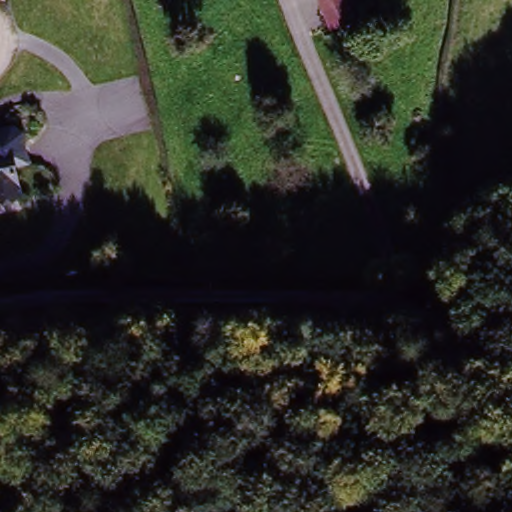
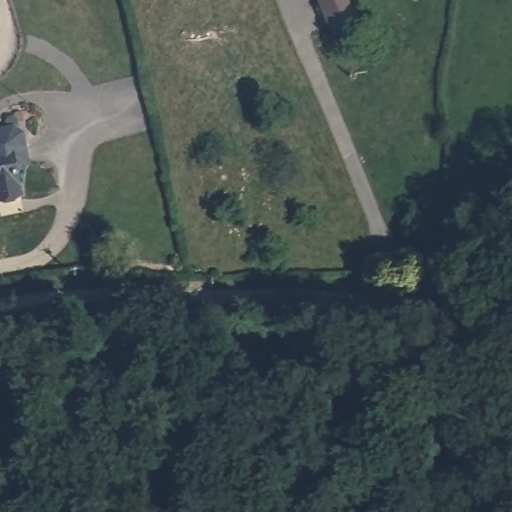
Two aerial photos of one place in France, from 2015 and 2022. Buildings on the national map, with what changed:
unchanged [(319,11),(315,0),(342,0),(343,2),(319,11)]
unchanged [(27,200),(0,209),(0,149),(13,147),(27,200)]

